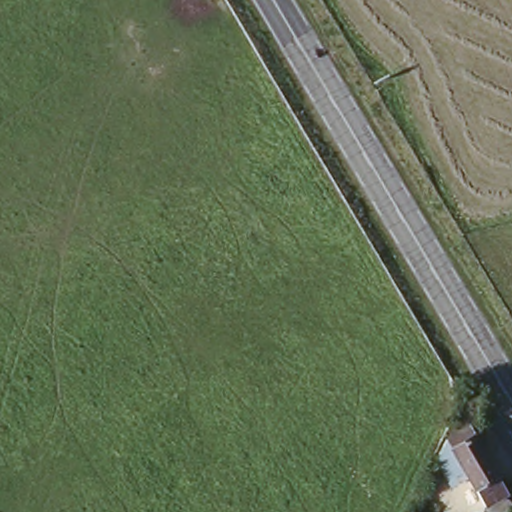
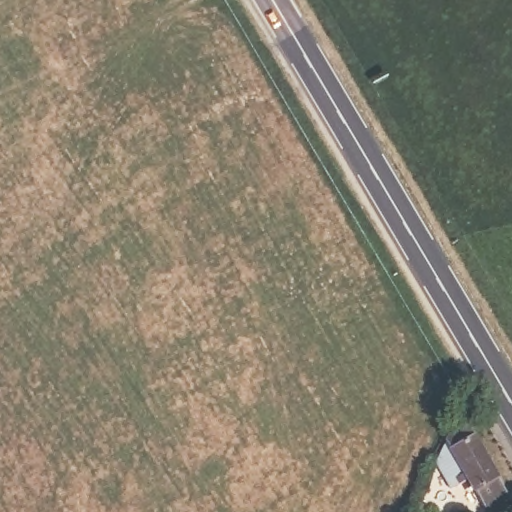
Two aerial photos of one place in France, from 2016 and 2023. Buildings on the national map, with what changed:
unchanged [(512,505),(499,512),(498,512),(481,485),(466,494),(451,473),(475,425),(512,487),(512,505)]

